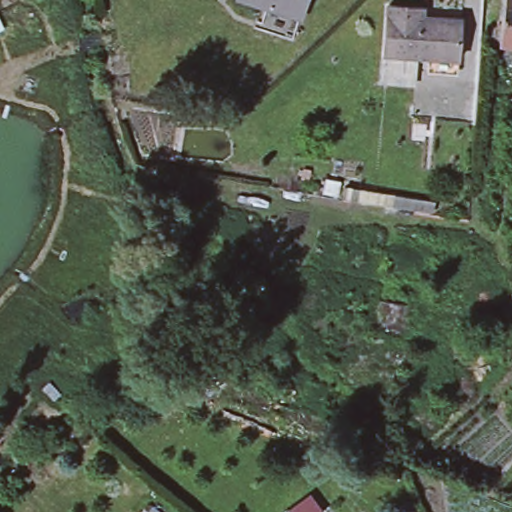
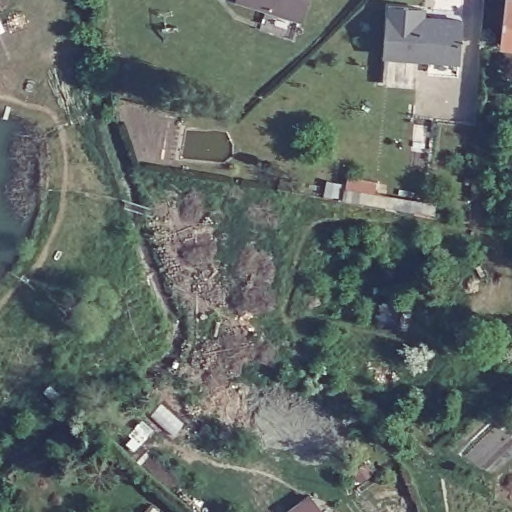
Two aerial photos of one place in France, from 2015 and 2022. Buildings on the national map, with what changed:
unchanged [(248,0),(305,0),(300,17),(248,0)]
unchanged [(432,53),(387,48),(392,0),(402,0),(429,3),(428,12),(466,16),(462,57),(460,66),(430,63),(432,53)]
unchanged [(504,0),(512,0),(512,45),(499,43),(504,0)]

